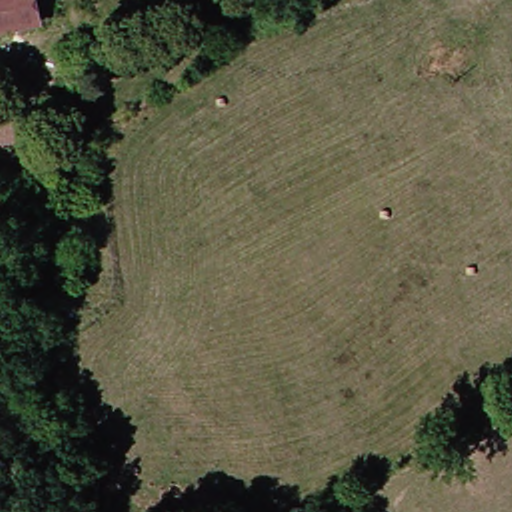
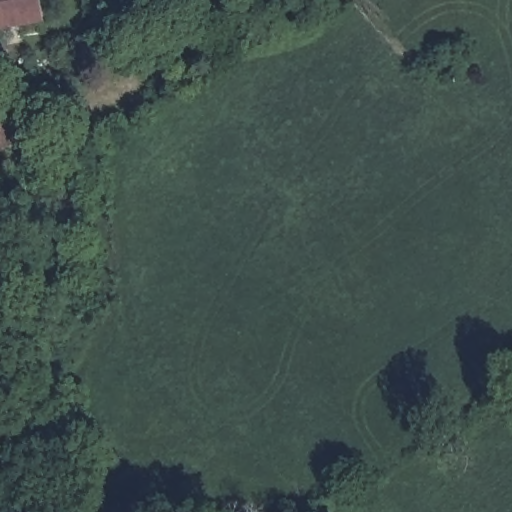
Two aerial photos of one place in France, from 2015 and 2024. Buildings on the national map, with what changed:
unchanged [(38,16),(0,24),(0,0),(36,0),(38,16)]
unchanged [(47,132),(0,139),(0,112),(43,105),(47,132)]

